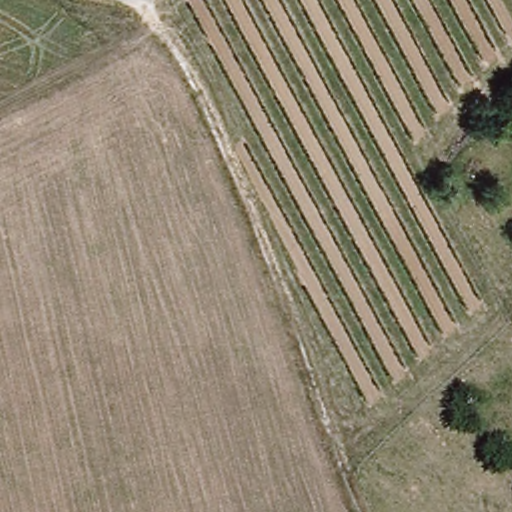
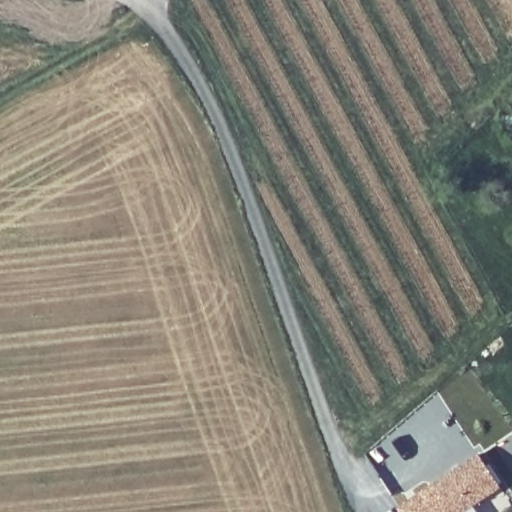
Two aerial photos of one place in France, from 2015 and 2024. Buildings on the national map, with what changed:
new [(461,512),(399,512),(396,508),(477,452),(501,486),(461,512)]

